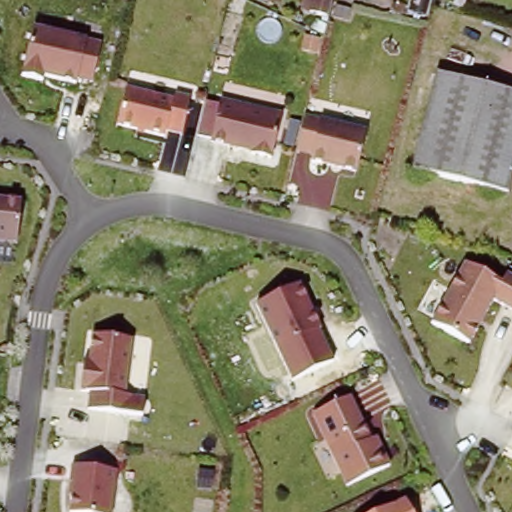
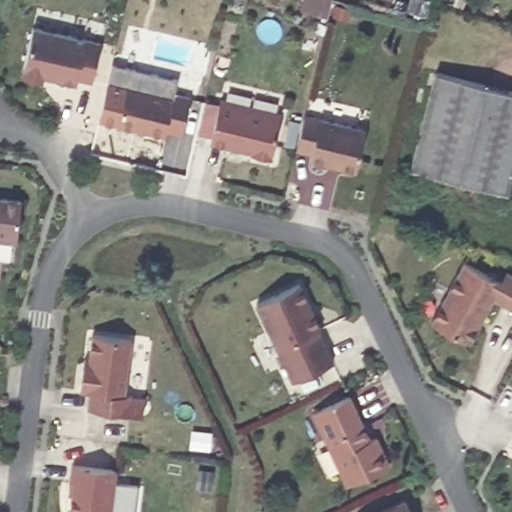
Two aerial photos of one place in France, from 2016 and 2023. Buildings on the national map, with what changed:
unchanged [(304,15),(308,0),(335,0),(331,21),(304,15)]
unchanged [(86,38),(88,33),(101,37),(94,74),(82,72),(78,86),(43,78),(42,82),(20,74),(34,27),(86,38)]
unchanged [(427,109),(438,68),(512,90),(512,135),(427,109)]
unchanged [(173,94),(175,89),(191,94),(183,130),(169,127),(168,136),(116,123),(125,87),(173,94)]
unchanged [(281,111),(271,160),(250,156),(251,153),(210,142),(220,98),(281,111)]
unchanged [(412,165),(427,109),(512,135),(512,173),(507,191),(412,165)]
unchanged [(354,173),(310,160),(313,151),(295,146),(306,110),(322,114),(321,117),(365,127),(354,173)]
unchanged [(16,238),(0,237),(0,196),(19,197),(16,238)]
unchanged [(467,257),(512,281),(512,305),(495,297),(479,326),(481,329),(470,344),(431,323),(467,257)]
unchanged [(299,281),(335,361),(291,381),(257,304),(299,281)]
unchanged [(132,339),(127,391),(144,393),(142,419),(96,416),(97,411),(87,408),(88,394),(80,391),(83,361),(88,361),(93,333),(132,339)]
unchanged [(348,392),(370,435),(374,433),(390,464),(351,487),(313,410),(348,392)]
unchanged [(116,467),(113,512),(68,512),(70,463),(116,467)]
unchanged [(407,500),(412,512),(381,512),(407,500)]

